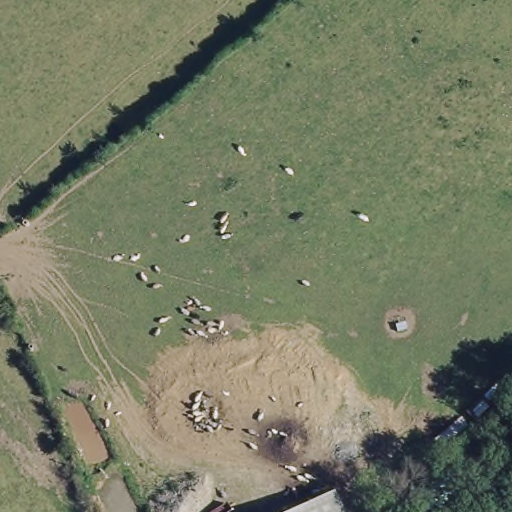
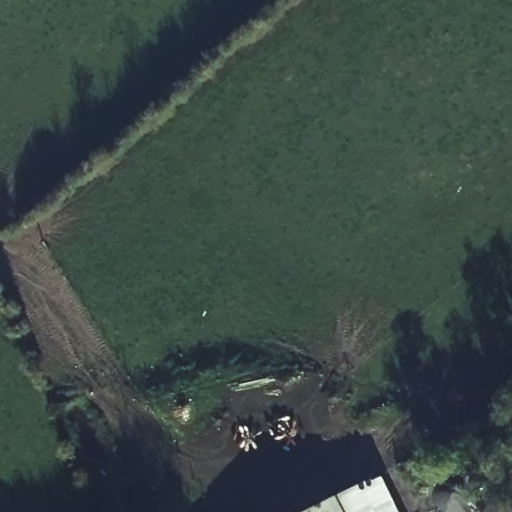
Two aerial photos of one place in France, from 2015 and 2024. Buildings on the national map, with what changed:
new [(333,496),(380,477),(398,512),(341,512),(333,496)]
unchanged [(341,512),(302,512),(333,496),(341,512)]

